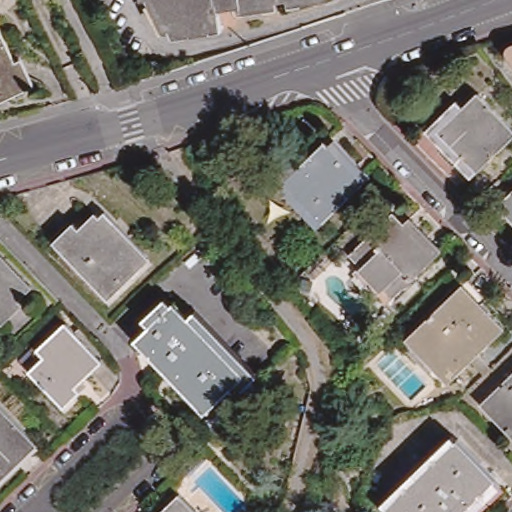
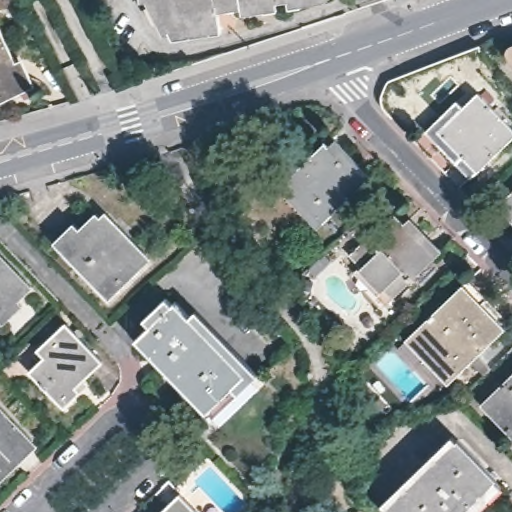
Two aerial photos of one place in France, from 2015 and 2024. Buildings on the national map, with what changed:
unchanged [(220,5),(222,25),(174,31),(170,25),(158,0),(259,0),(220,5)]
unchanged [(31,79),(0,94),(0,18),(12,40),(12,41),(31,79)]
unchanged [(510,53),(509,51),(509,49),(510,46),(512,45),(512,57),(511,55),(510,53)]
unchanged [(477,169),(451,142),(438,127),(453,113),(478,88),(512,123),(512,135),(477,169)]
unchanged [(331,139),(371,180),(324,226),(283,185),(331,139)]
unchanged [(499,203),(512,190),(512,217),(499,203)]
unchanged [(104,204),(153,256),(117,290),(68,239),(104,204)]
unchanged [(394,212),(435,255),(391,296),(350,255),(394,212)]
unchanged [(4,314),(0,310),(0,248),(36,284),(4,314)]
unchanged [(409,338),(415,331),(466,283),(508,326),(458,375),(452,381),(409,338)]
unchanged [(179,296),(250,371),(211,409),(140,334),(179,296)]
unchanged [(64,309),(106,353),(79,379),(84,383),(68,399),(33,362),(48,347),(37,335),(64,309)]
unchanged [(512,375),(512,426),(487,399),(512,375)]
unchanged [(1,400),(42,441),(0,483),(0,401),(1,400)]
unchanged [(507,482),(476,512),(398,512),(468,443),(507,482)]
unchanged [(211,512),(160,512),(187,487),(211,512)]

